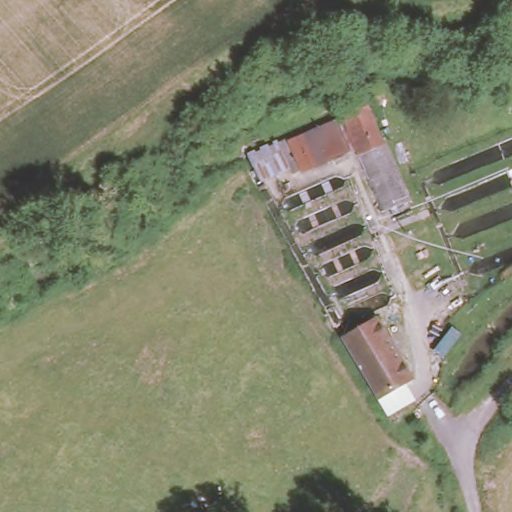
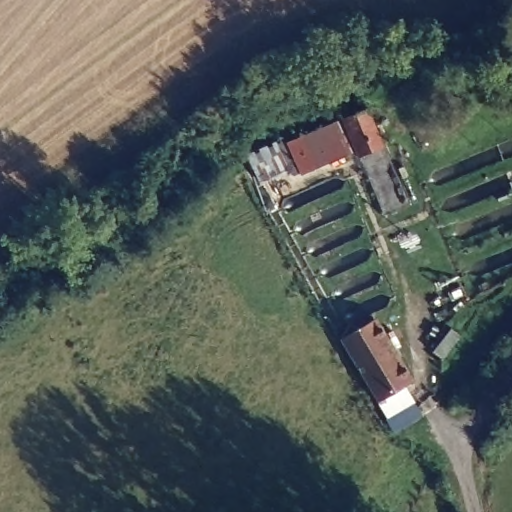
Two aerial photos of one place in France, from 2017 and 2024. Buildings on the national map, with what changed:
unchanged [(251,156),(291,140),(344,118),(371,106),(414,206),(389,216),(361,154),(303,169),(264,184),(251,156)]
unchanged [(418,380),(407,387),(415,398),(389,415),(343,337),(379,317),(418,380)]

